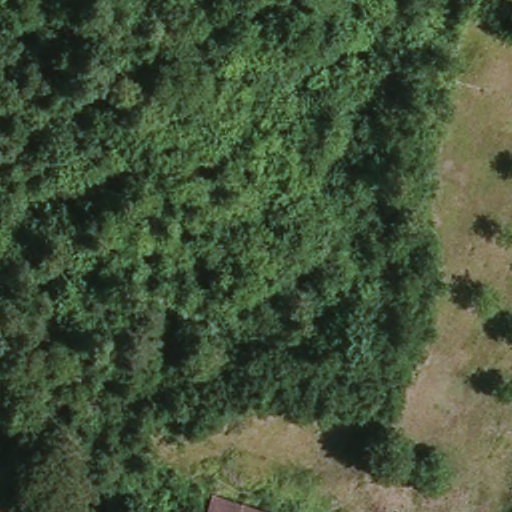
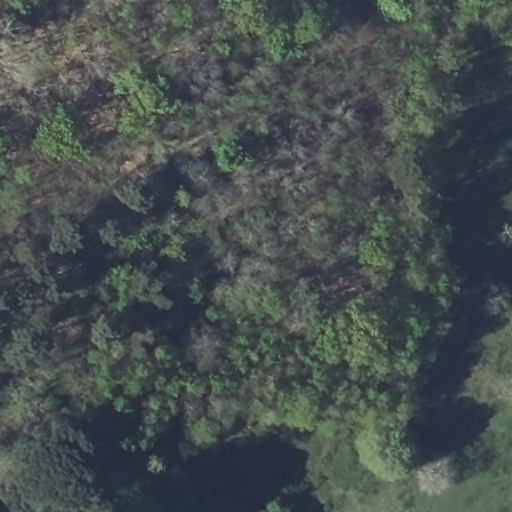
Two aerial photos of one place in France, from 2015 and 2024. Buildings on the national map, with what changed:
unchanged [(215,498),(249,512),(210,512),(215,498)]

